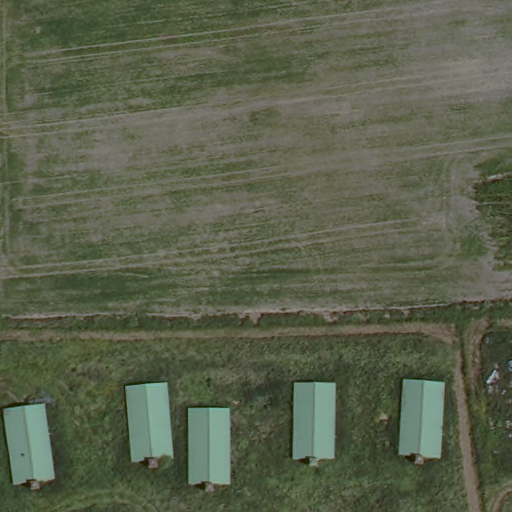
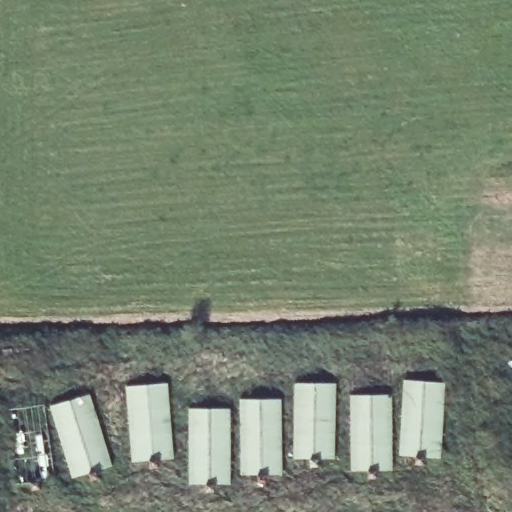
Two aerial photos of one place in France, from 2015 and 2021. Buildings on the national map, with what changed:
unchanged [(167,380),(177,462),(132,459),(129,387),(167,380)]
unchanged [(294,382),(337,380),(337,458),(291,454),(294,382)]
unchanged [(404,381),(448,380),(442,459),(398,451),(404,381)]
new [(52,407),(91,394),(114,466),(74,478),(52,407)]
new [(352,470),(352,395),(392,395),(393,470),(352,470)]
new [(242,474),(241,400),(283,399),(283,475),(242,474)]
unchanged [(49,401),(59,477),(14,480),(3,407),(49,401)]
unchanged [(232,404),(233,484),(189,480),(188,405),(232,404)]

